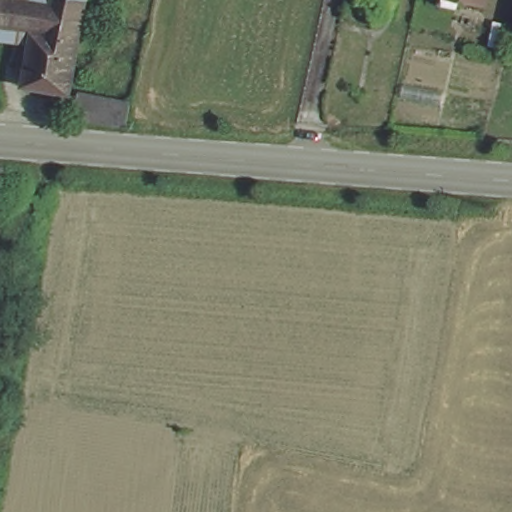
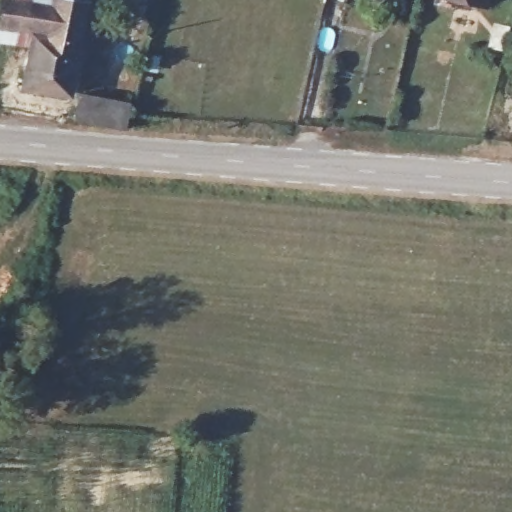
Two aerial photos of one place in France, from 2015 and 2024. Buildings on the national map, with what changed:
unchanged [(23,45),(0,42),(0,0),(88,0),(71,96),(17,87),(23,45)]
unchanged [(114,122),(73,114),(77,96),(117,101),(116,108),(114,122)]

